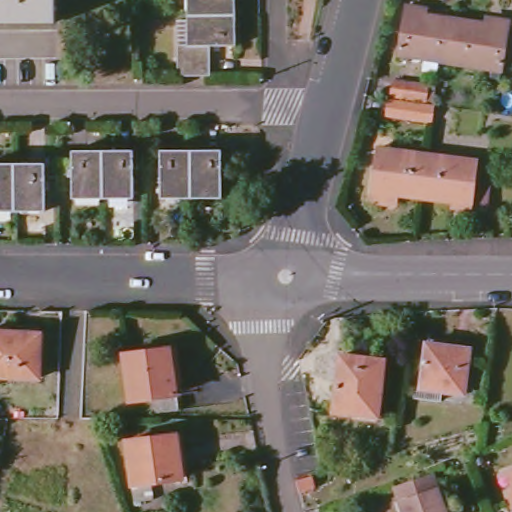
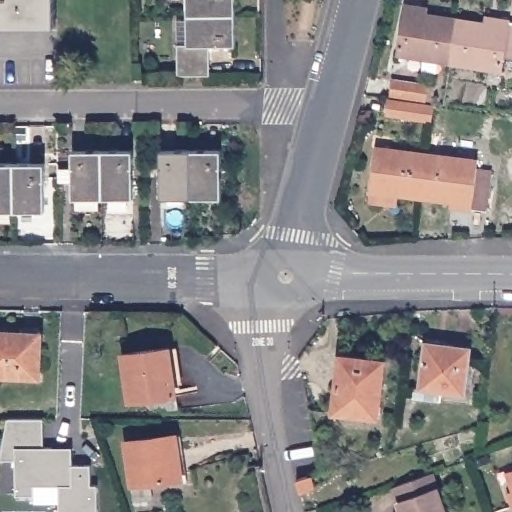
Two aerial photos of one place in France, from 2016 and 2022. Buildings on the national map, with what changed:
unchanged [(50,0),(50,24),(0,24),(0,0),(50,0)]
unchanged [(230,0),(230,15),(183,15),(183,0),(230,0)]
unchanged [(450,63),(399,56),(406,6),(422,8),(421,15),(457,20),(450,63)]
unchanged [(231,45),(205,45),(205,75),(173,75),(173,43),(182,43),(183,15),(230,15),(231,45)]
unchanged [(492,25),(493,20),(512,22),(512,60),(503,58),(501,71),(450,63),(457,20),(492,25)]
unchanged [(390,97),(392,81),(434,87),(432,102),(390,97)]
unchanged [(432,122),(387,116),(389,102),(434,108),(432,122)]
unchanged [(73,197),(73,150),(102,150),(103,198),(73,197)]
unchanged [(133,150),(134,197),(103,198),(102,150),(133,150)]
unchanged [(162,198),(162,150),(191,150),(192,197),(162,198)]
unchanged [(222,198),(192,197),(191,150),(222,150),(222,198)]
unchanged [(423,203),(387,199),(386,206),(370,204),(377,153),(428,160),(423,203)]
unchanged [(428,160),(479,165),(477,174),(492,176),(487,217),(457,213),(457,207),(423,203),(428,160)]
unchanged [(15,162),(15,211),(0,211),(0,163),(15,162)]
unchanged [(45,210),(15,211),(15,162),(45,162),(45,210)]
unchanged [(0,375),(0,331),(23,332),(23,333),(42,333),(39,376),(0,375)]
unchanged [(148,392),(131,394),(125,347),(170,342),(178,404),(150,408),(148,392)]
unchanged [(422,387),(428,342),(472,348),(465,393),(442,390),(442,401),(415,397),(415,387),(422,387)]
unchanged [(336,409),(343,353),(386,359),(378,415),(336,409)]
new [(44,447),(72,447),(72,465),(90,466),(92,487),(97,487),(97,512),(59,512),(59,486),(32,486),(32,497),(15,496),(15,462),(0,462),(0,454),(7,419),(43,419),(44,447)]
unchanged [(127,436),(177,430),(182,472),(150,477),(152,495),(135,497),(127,436)]
unchanged [(433,472),(447,512),(405,512),(397,486),(433,472)]
unchanged [(512,472),(512,477),(510,472),(512,472)]
unchanged [(298,480),(313,476),(316,487),(301,491),(298,480)]
unchanged [(512,492),(512,495),(511,492),(512,492)]

